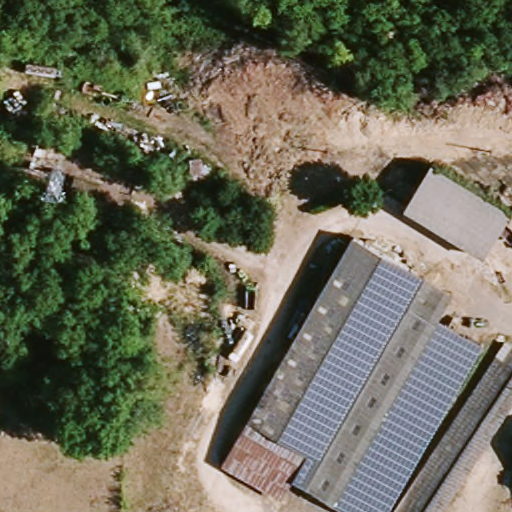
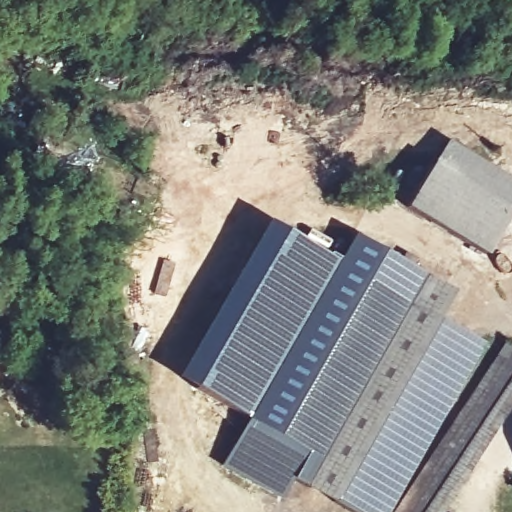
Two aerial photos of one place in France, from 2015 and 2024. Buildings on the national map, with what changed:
unchanged [(405,213),(437,147),(512,185),(512,194),(482,258),(405,213)]
new [(246,418),(177,377),(267,222),(335,259),(246,418)]
unchanged [(462,337),(365,512),(335,512),(227,452),(344,243),(453,304),(440,327),(462,337)]
unchanged [(462,337),(492,359),(386,512),(365,512),(462,337)]
unchanged [(512,419),(448,512),(386,512),(492,359),(500,348),(512,356),(512,419)]

